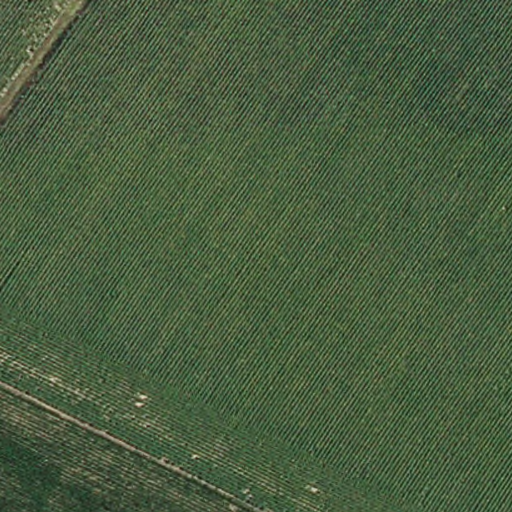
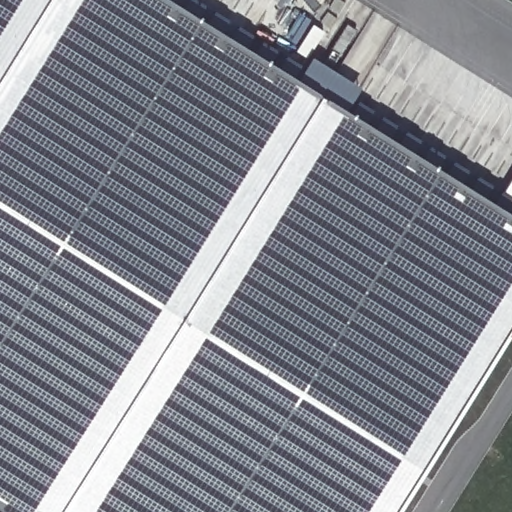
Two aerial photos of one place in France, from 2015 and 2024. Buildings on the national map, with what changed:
new [(0,512),(0,0),(169,0),(512,216),(512,325),(393,512),(0,512)]

